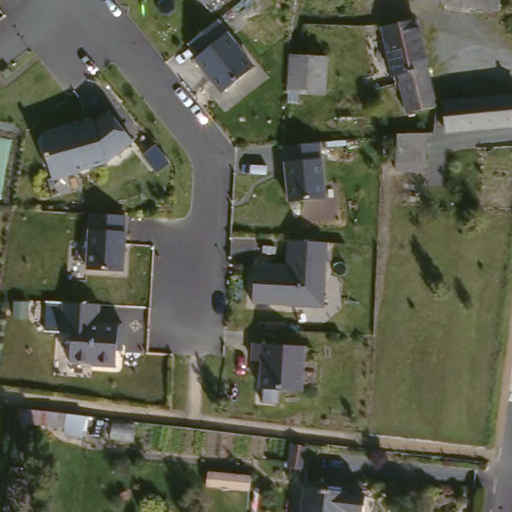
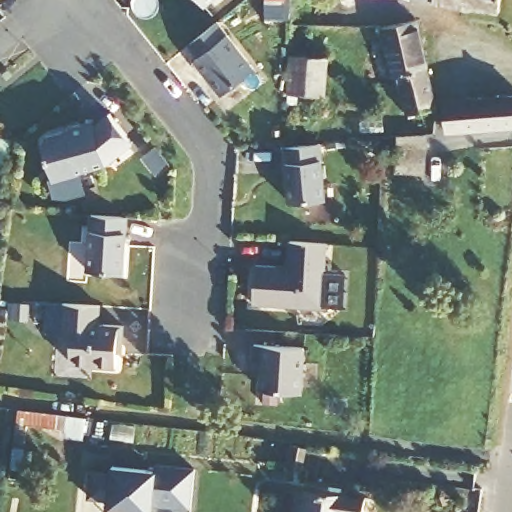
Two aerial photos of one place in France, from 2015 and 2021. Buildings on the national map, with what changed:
unchanged [(205,3),(202,0),(209,0),(205,3)]
unchanged [(503,11),(440,5),(440,0),(505,0),(503,11)]
unchanged [(441,105),(416,111),(407,71),(400,73),(388,24),(423,16),(441,105)]
unchanged [(259,67),(229,92),(189,46),(220,20),(259,67)]
unchanged [(335,41),(330,107),(294,104),(299,37),(335,41)]
unchanged [(458,132),(457,132),(451,104),(512,91),(512,122),(458,132)]
unchanged [(80,123),(108,106),(135,140),(104,166),(60,177),(45,134),(80,123)]
unchanged [(430,129),(431,170),(405,169),(403,130),(430,129)]
unchanged [(329,197),(296,201),(289,145),(322,141),(329,197)]
unchanged [(97,213),(137,216),(134,271),(93,268),(97,213)]
unchanged [(328,307),(258,305),(260,260),(292,259),(293,240),(333,239),(328,307)]
unchanged [(110,302),(106,318),(132,318),(126,363),(82,361),(65,338),(70,303),(110,302)]
unchanged [(308,392),(265,388),(267,343),(311,344),(308,392)]
new [(65,429),(17,423),(19,410),(85,417),(82,438),(64,437),(65,429)]
new [(191,509),(155,504),(154,512),(128,512),(106,510),(107,499),(87,498),(90,471),(108,472),(109,464),(153,468),(155,462),(195,467),(191,509)]
unchanged [(350,493),(370,498),(368,512),(351,512),(347,512),(307,512),(312,483),(351,491),(350,493)]

